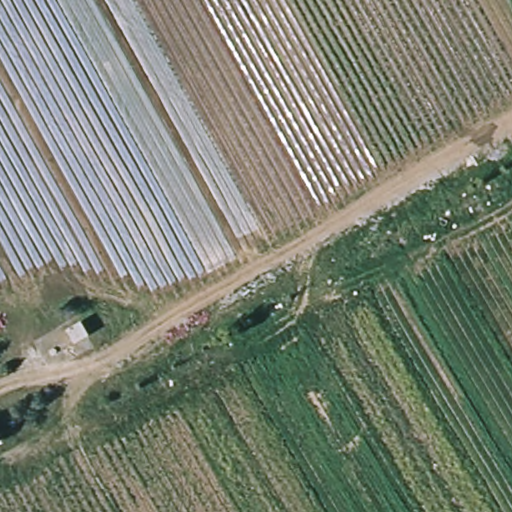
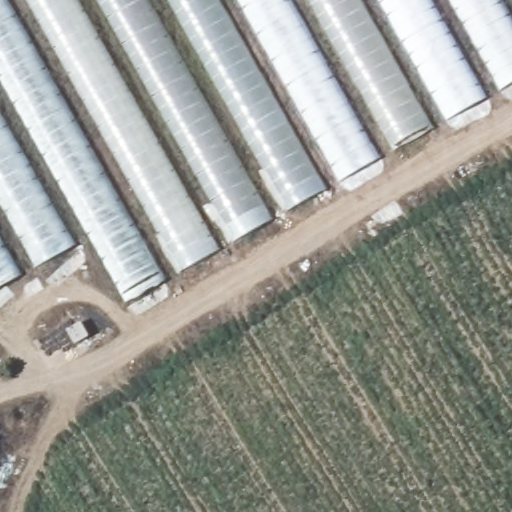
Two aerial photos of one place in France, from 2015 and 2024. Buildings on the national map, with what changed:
new [(93,239),(0,288),(0,0),(506,0),(512,10),(512,82),(128,302),(93,239)]
unchanged [(73,346),(65,332),(80,324),(89,338),(73,346)]

